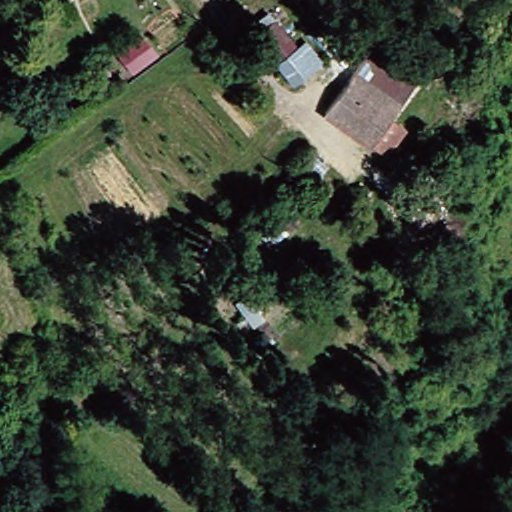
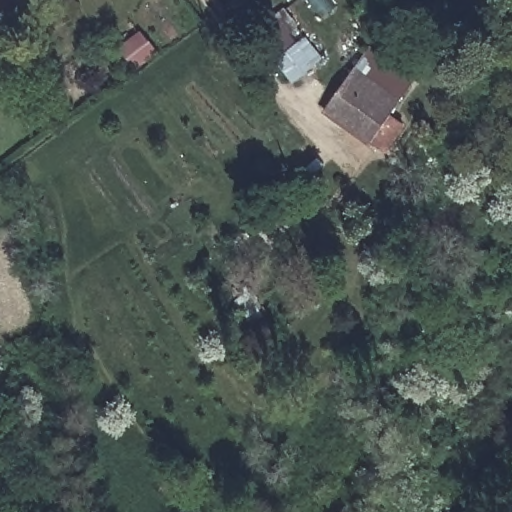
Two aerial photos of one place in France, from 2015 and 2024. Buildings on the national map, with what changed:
unchanged [(302,90),(285,70),(263,43),(285,26),(307,53),(315,47),(331,67),(302,90)]
unchanged [(375,149),(361,139),(360,141),(315,110),(360,46),(405,77),(380,113),(393,124),(375,149)]

